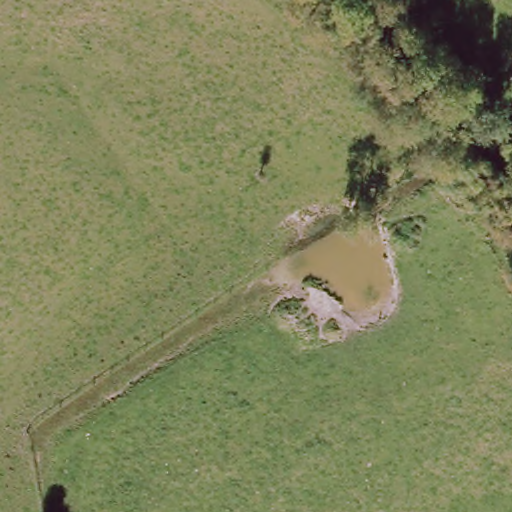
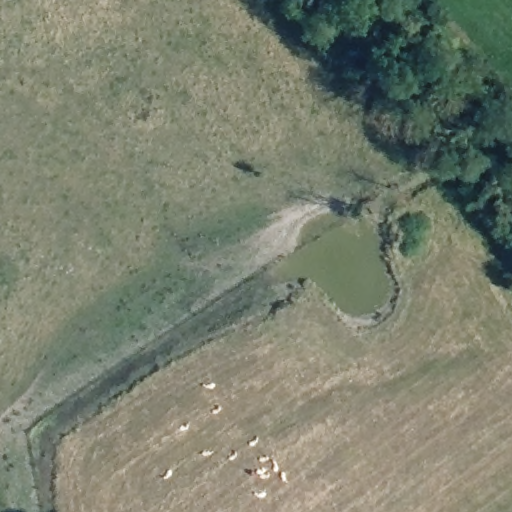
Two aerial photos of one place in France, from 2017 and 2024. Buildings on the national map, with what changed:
[]

